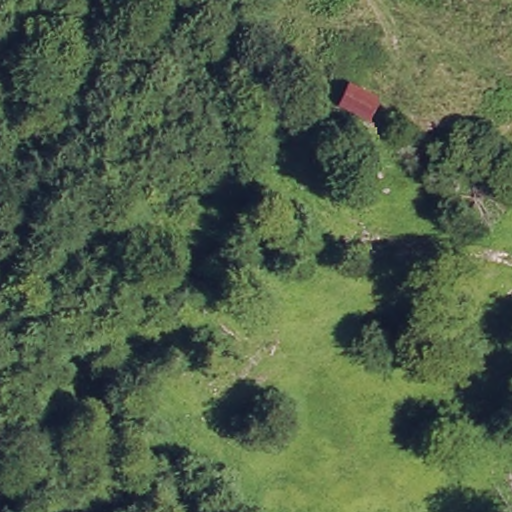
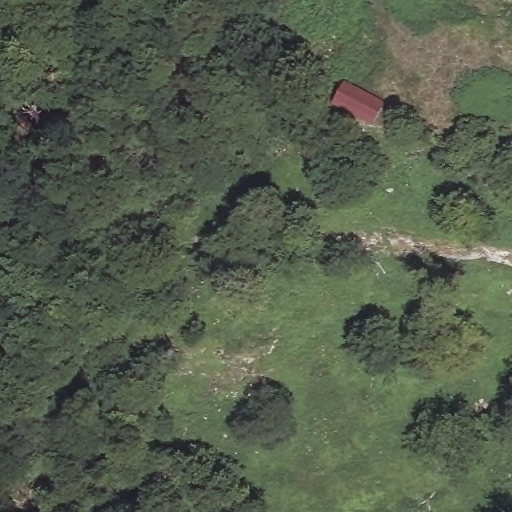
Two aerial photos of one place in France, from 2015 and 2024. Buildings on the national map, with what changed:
unchanged [(384,108),(370,131),(326,108),(340,90),(384,108)]

